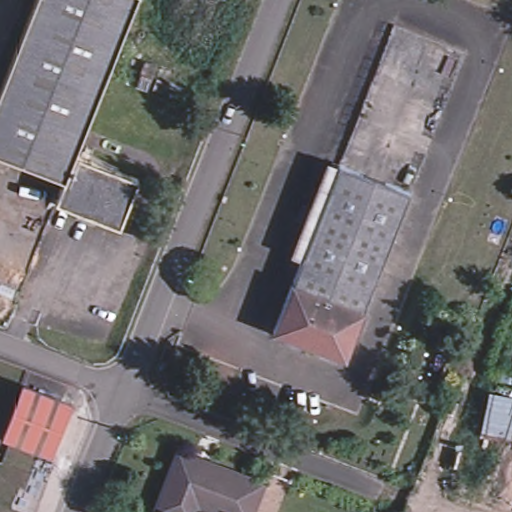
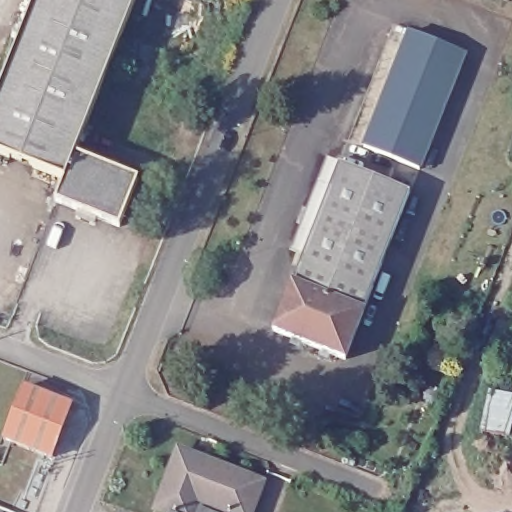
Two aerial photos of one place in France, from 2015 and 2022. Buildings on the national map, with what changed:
unchanged [(141,0),(100,101),(12,66),(39,0),(141,0)]
new [(467,55),(422,171),(362,146),(407,30),(467,55)]
unchanged [(0,155),(0,97),(12,66),(100,101),(78,155),(67,182),(0,155)]
unchanged [(59,203),(67,182),(78,155),(142,180),(123,228),(59,203)]
unchanged [(415,192),(347,357),(275,327),(343,162),(415,192)]
unchanged [(17,384),(67,401),(49,452),(0,436),(17,384)]
unchanged [(489,392),(512,397),(512,438),(481,432),(489,392)]
unchanged [(163,511),(185,453),(267,485),(256,512),(220,512),(205,506),(202,512),(167,512),(163,511)]
unchanged [(220,512),(202,512),(205,506),(220,512)]

